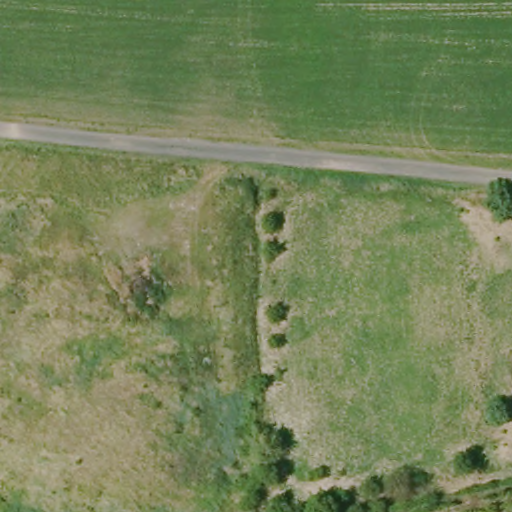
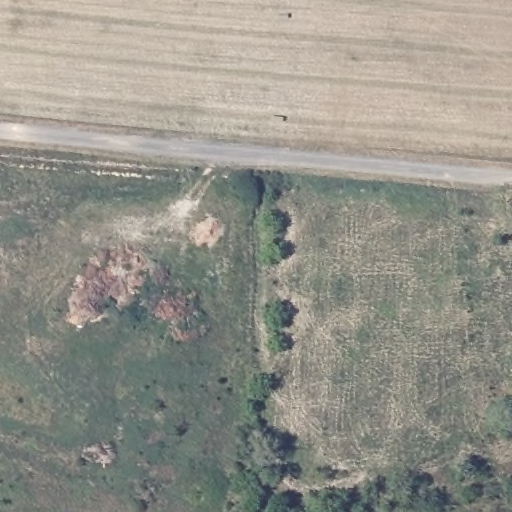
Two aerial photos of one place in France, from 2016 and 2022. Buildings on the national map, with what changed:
[]

